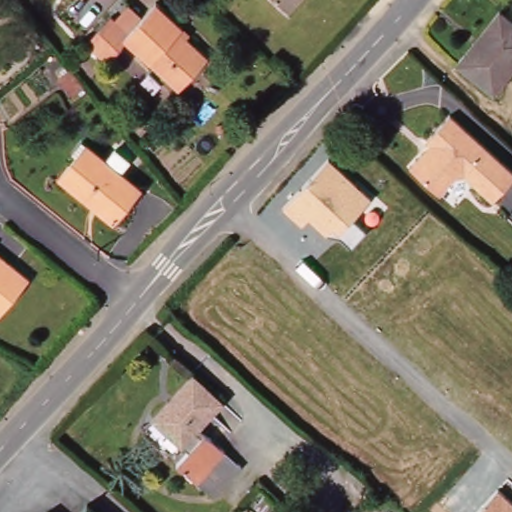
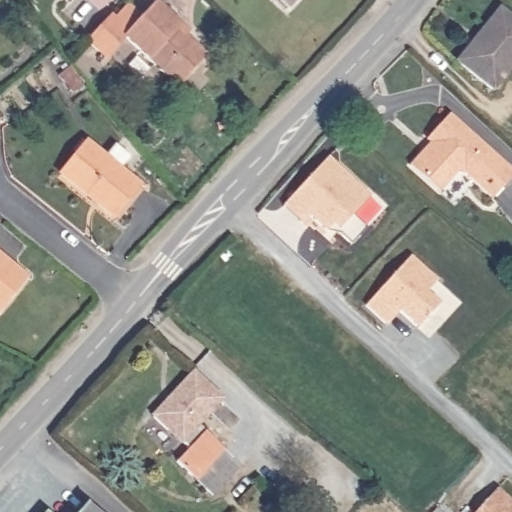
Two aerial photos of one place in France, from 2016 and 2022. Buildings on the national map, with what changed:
unchanged [(180,28),(207,53),(176,86),(122,37),(100,60),(79,41),(102,16),(117,0),(123,0),(141,17),(156,1),(182,26),(180,28)]
unchanged [(283,0),(296,0),(291,6),(283,0)]
unchanged [(500,6),(512,18),(512,59),(489,87),(457,57),(500,6)]
unchanged [(426,140),(452,112),(512,166),(512,175),(492,199),(461,172),(438,194),(412,170),(433,147),(426,140)]
unchanged [(84,144),(135,188),(109,218),(57,173),(84,144)]
unchanged [(371,195),(352,218),(366,230),(352,244),(341,235),(325,232),(308,217),(301,222),(283,204),(329,157),(371,195)]
unchanged [(0,305),(0,255),(25,275),(0,305)]
new [(436,279),(426,292),(437,304),(417,328),(400,312),(388,326),(365,306),(410,257),(436,279)]
unchanged [(191,374),(219,400),(197,424),(240,462),(212,492),(176,459),(188,447),(153,416),(191,374)]
unchanged [(512,502),(512,512),(475,512),(497,489),(512,502)]

